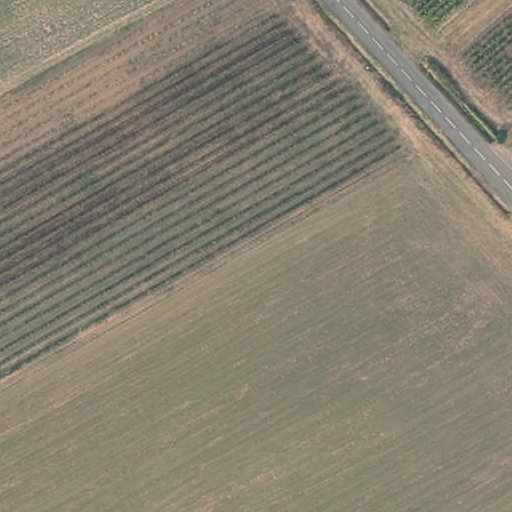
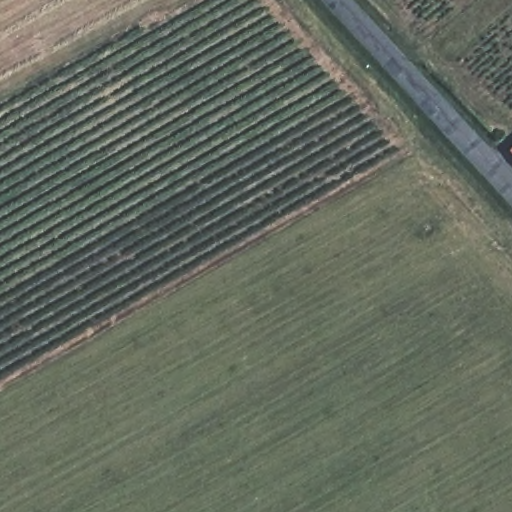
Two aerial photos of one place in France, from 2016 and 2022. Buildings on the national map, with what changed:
unchanged [(512,152),(512,154),(511,153),(512,152)]

